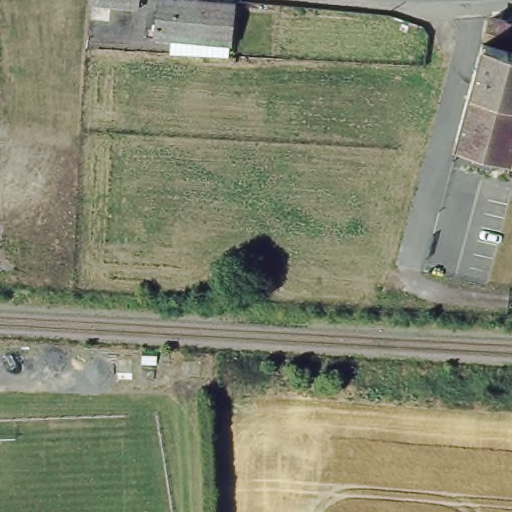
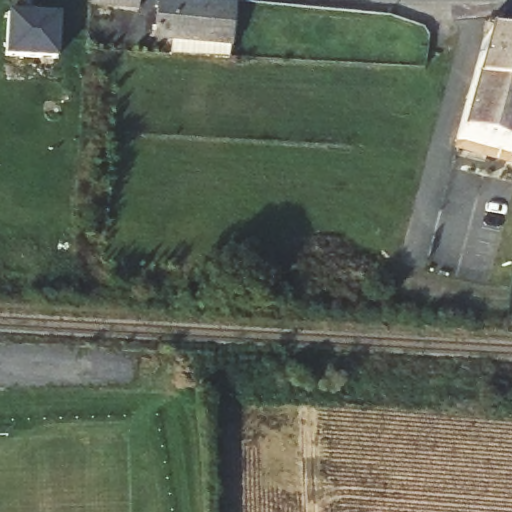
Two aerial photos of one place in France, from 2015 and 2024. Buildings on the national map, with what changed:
unchanged [(125,0),(139,0),(139,1),(125,0)]
unchanged [(223,8),(221,35),(159,30),(161,3),(223,8)]
new [(59,16),(56,60),(4,56),(6,12),(59,16)]
unchanged [(456,136),(480,26),(512,33),(512,151),(456,136)]

